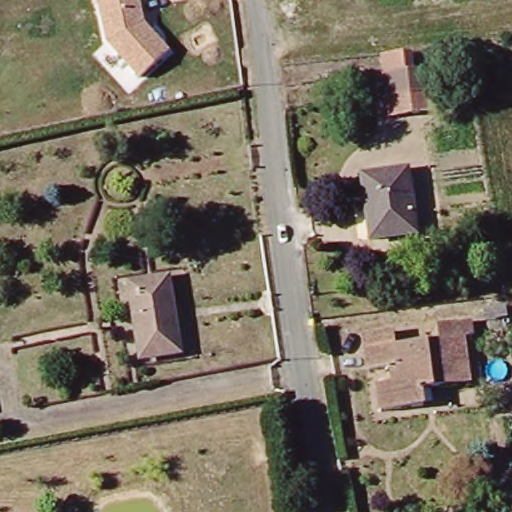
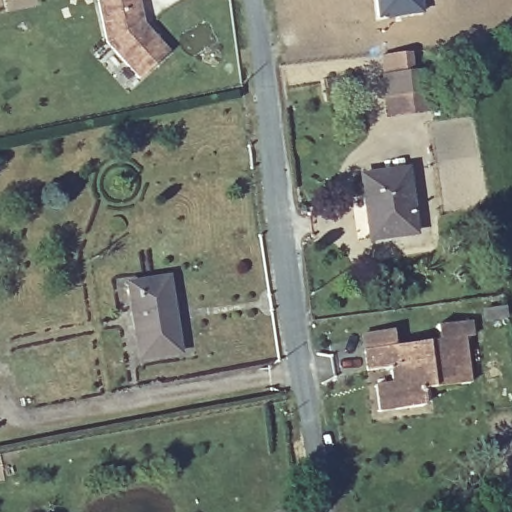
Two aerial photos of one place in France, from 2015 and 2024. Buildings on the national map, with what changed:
unchanged [(144,25),(169,50),(138,80),(105,46),(96,0),(140,0),(144,25)]
new [(424,14),(377,19),(375,0),(422,0),(424,14)]
unchanged [(431,108),(385,117),(377,75),(423,66),(431,108)]
unchanged [(364,239),(356,177),(402,171),(410,233),(364,239)]
unchanged [(166,281),(177,352),(136,358),(126,287),(166,281)]
unchanged [(358,369),(356,333),(389,329),(393,346),(433,341),(431,327),(466,323),(469,338),(458,340),(466,383),(413,390),(416,407),(369,412),(366,385),(383,383),(382,367),(358,369)]

